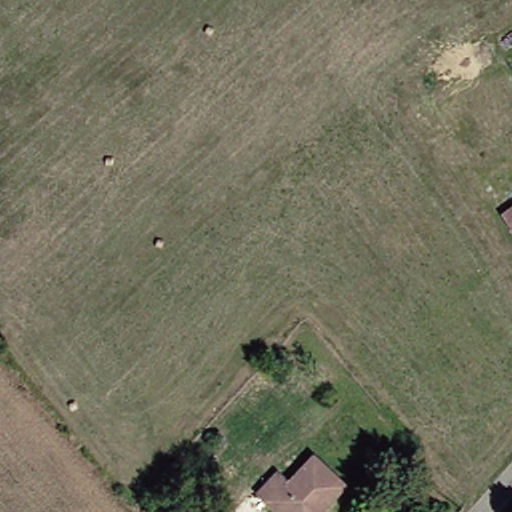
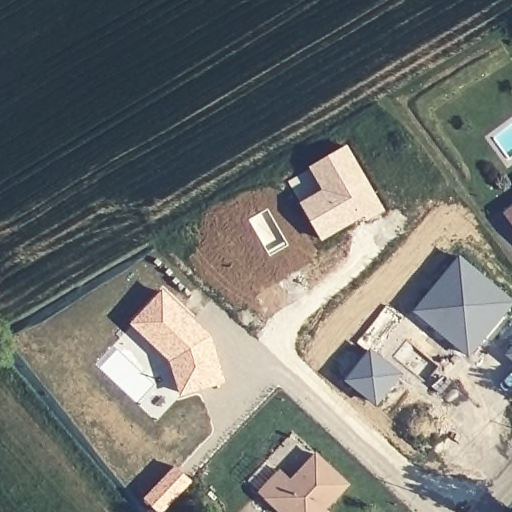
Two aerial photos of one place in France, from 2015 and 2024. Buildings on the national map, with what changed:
new [(368,220),(365,216),(322,241),(299,202),(322,190),(309,167),(348,145),(385,210),(368,220)]
unchanged [(508,207),(512,204),(512,213),(508,207)]
new [(471,358),(413,311),(459,255),(512,300),(512,307),(471,358)]
new [(180,396),(170,361),(130,323),(162,287),(212,336),(226,382),(180,396)]
new [(504,355),(512,346),(512,361),(504,355)]
new [(377,406),(345,381),(371,348),(404,375),(377,406)]
unchanged [(257,496),(278,475),(290,485),(317,457),(348,487),(324,511),(325,512),(273,512),(270,509),(257,496)]
new [(159,512),(144,498),(177,463),(194,481),(163,512),(159,512)]

